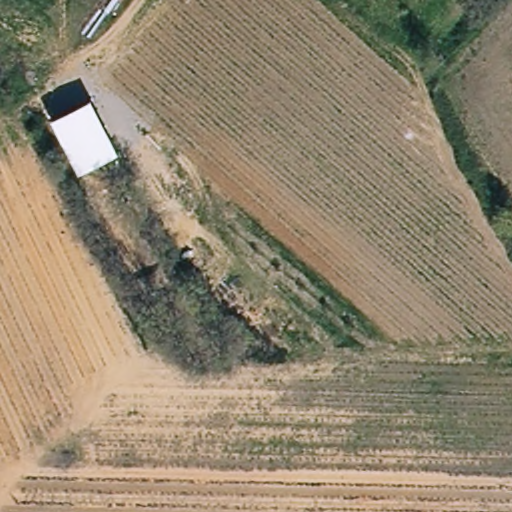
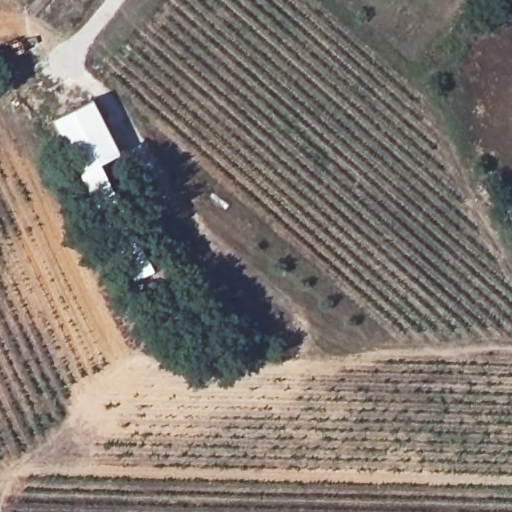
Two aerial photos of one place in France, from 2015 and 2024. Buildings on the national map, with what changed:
unchanged [(117,153),(79,176),(52,119),(92,99),(117,153)]

